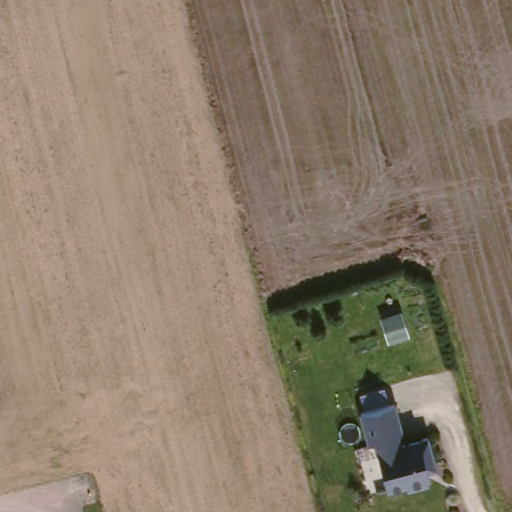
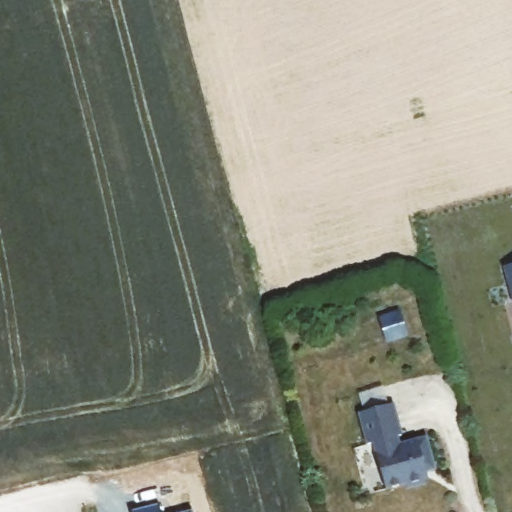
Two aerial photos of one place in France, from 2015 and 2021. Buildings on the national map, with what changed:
new [(512,266),(512,296),(504,268),(512,266)]
unchanged [(430,487),(383,497),(359,409),(388,401),(400,440),(418,438),(430,487)]

